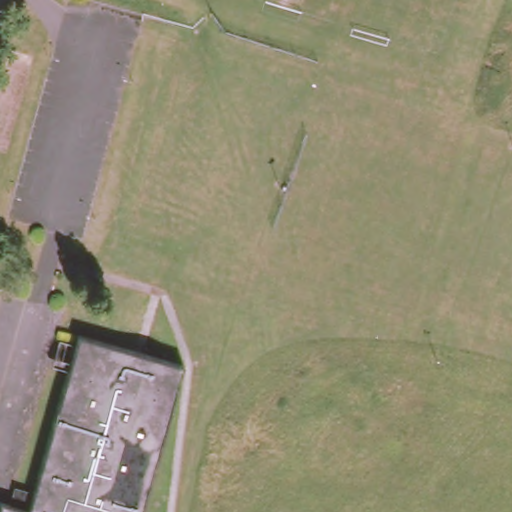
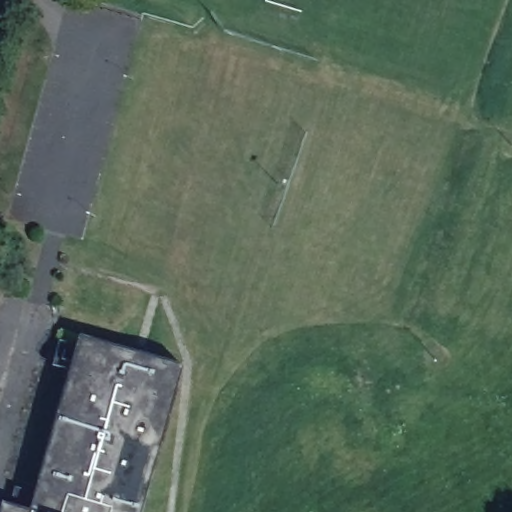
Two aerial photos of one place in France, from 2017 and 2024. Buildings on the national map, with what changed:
unchanged [(9,499),(15,481),(30,486),(76,327),(184,358),(140,512),(0,512),(0,498),(0,496),(9,499)]

